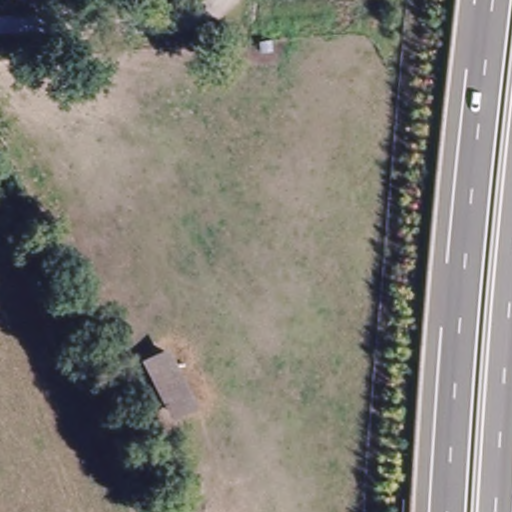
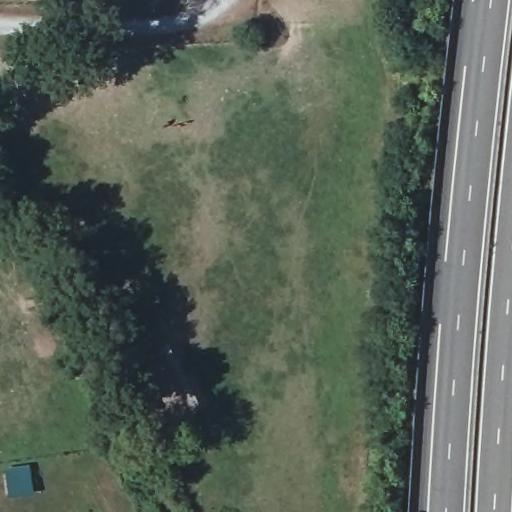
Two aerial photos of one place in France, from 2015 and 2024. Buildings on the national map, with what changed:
unchanged [(168,346),(201,407),(172,421),(142,360),(168,346)]

